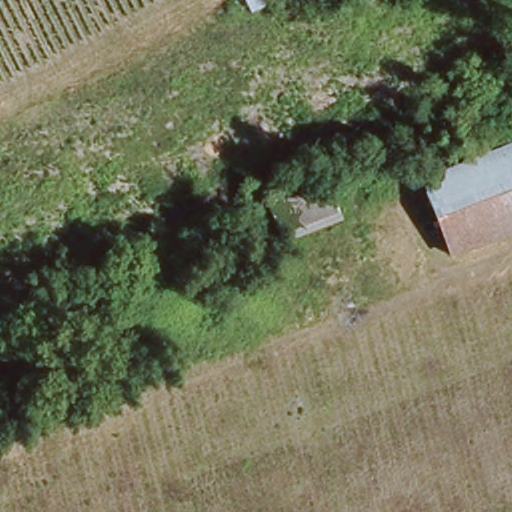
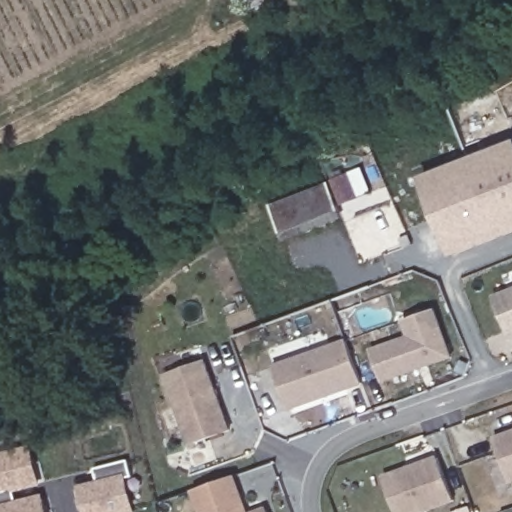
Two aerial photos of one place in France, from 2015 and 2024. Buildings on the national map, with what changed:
unchanged [(447,247),(419,181),(512,140),(512,221),(447,247)]
unchanged [(340,210),(283,234),(270,208),(328,184),(340,210)]
new [(510,335),(493,296),(512,289),(512,334),(510,335)]
new [(453,358),(382,382),(371,349),(409,337),(403,320),(436,309),(453,358)]
new [(362,384),(290,408),(275,366),(347,341),(362,384)]
new [(231,431),(189,445),(164,374),(207,360),(231,431)]
unchanged [(60,389),(72,385),(77,401),(64,405),(60,389)]
new [(512,434),(512,483),(509,483),(494,440),(512,434)]
new [(43,486),(17,493),(18,501),(45,495),(50,512),(0,512),(0,455),(33,447),(43,486)]
new [(396,512),(383,475),(439,456),(455,502),(428,512),(396,512)]
new [(98,481),(95,469),(130,461),(133,477),(128,478),(137,512),(85,512),(78,486),(98,481)]
new [(236,475),(249,512),(200,512),(193,491),(236,475)]
new [(270,512),(249,512),(268,507),(270,512)]

